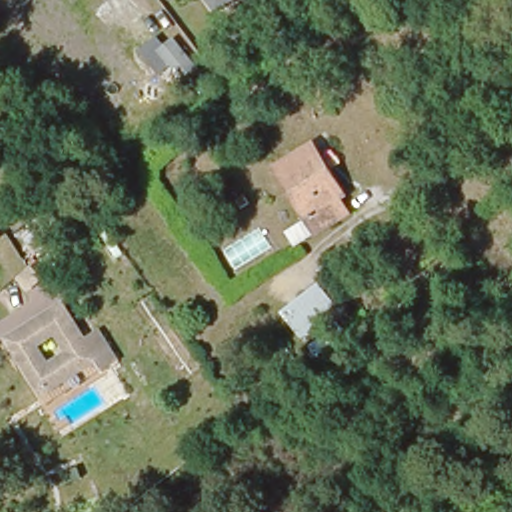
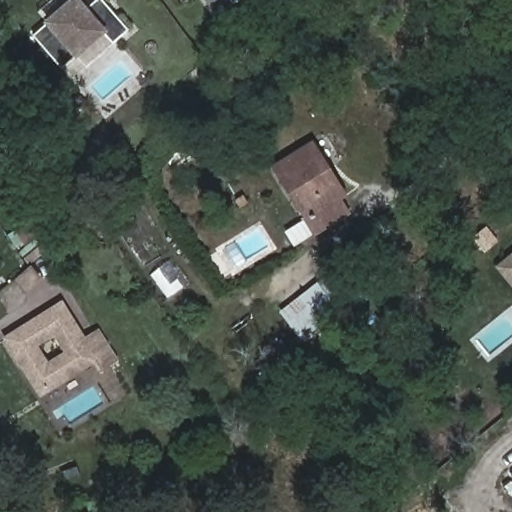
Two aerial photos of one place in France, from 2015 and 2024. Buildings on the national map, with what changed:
new [(76,0),(77,0),(87,12),(100,0),(102,0),(129,31),(114,44),(104,33),(63,70),(34,37),(76,0)]
unchanged [(314,233),(306,220),(275,170),(311,148),(315,145),(330,170),(345,196),(339,200),(347,213),(314,233)]
new [(512,254),(512,286),(497,266),(512,254)]
unchanged [(334,304),(315,319),(312,315),(293,329),(279,312),(317,282),(334,304)]
unchanged [(39,392),(4,337),(58,302),(80,336),(95,327),(115,357),(99,367),(45,402),(39,392)]

